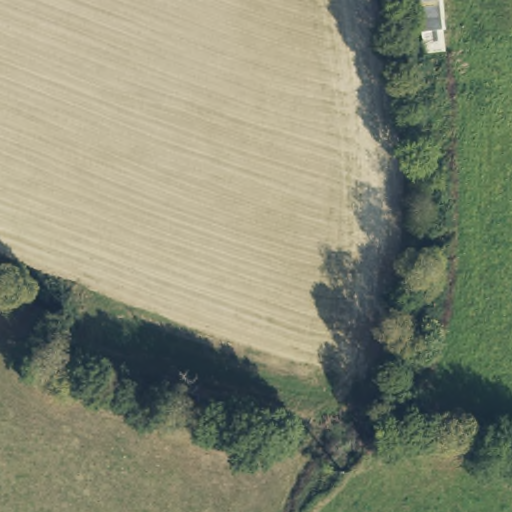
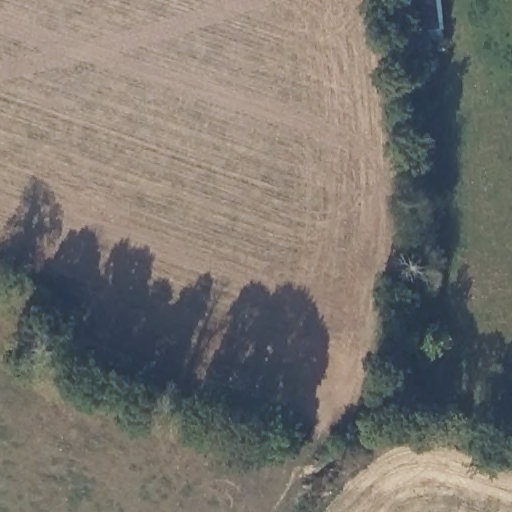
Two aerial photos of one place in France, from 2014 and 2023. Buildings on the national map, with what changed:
unchanged [(444,34),(445,53),(421,55),(421,35),(419,0),(442,0),(444,34)]

